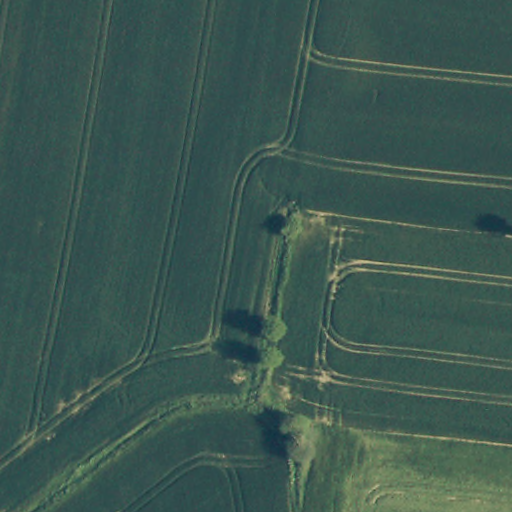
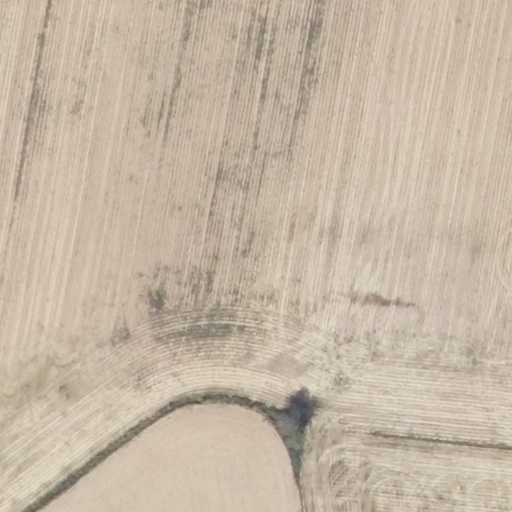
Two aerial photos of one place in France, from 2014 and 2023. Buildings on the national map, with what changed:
[]

